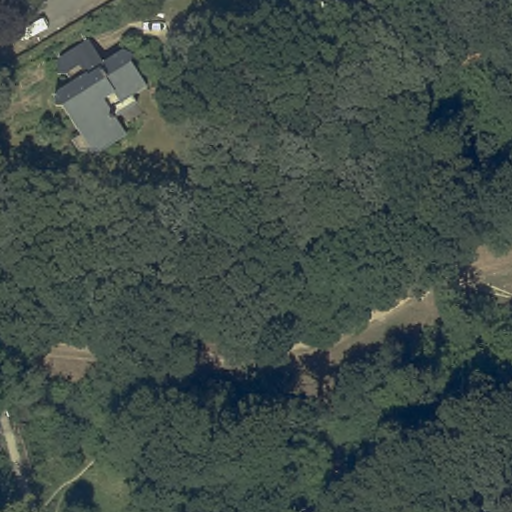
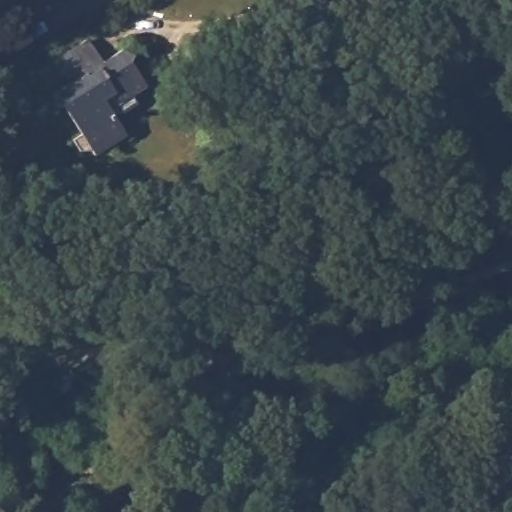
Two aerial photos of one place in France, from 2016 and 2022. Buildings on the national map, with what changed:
unchanged [(119,121),(131,140),(99,161),(96,156),(84,156),(76,146),(85,139),(66,108),(59,109),(58,96),(76,86),(72,78),(63,79),(62,65),(94,46),(106,65),(128,55),(138,59),(134,66),(145,81),(152,91),(137,101),(141,108),(119,121)]

